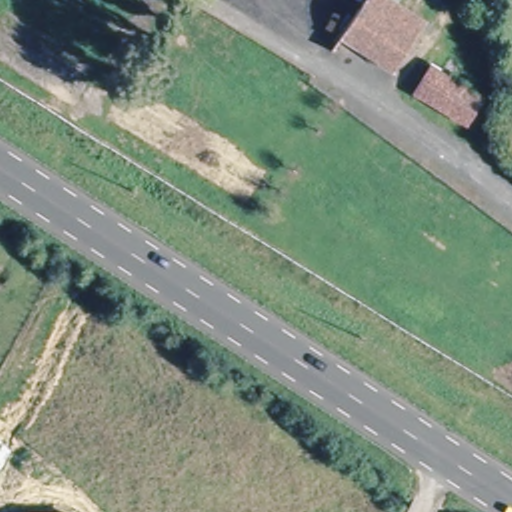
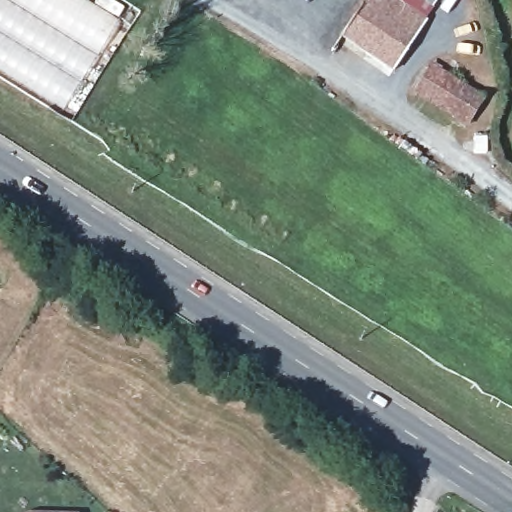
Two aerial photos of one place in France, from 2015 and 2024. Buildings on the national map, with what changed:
new [(0,71),(0,0),(87,0),(118,18),(67,109),(0,71)]
unchanged [(355,0),(386,0),(432,30),(399,79),(331,36),(355,0)]
unchanged [(428,58),(487,98),(468,126),(409,92),(428,58)]
unchanged [(32,511),(40,512),(31,512),(32,511)]

